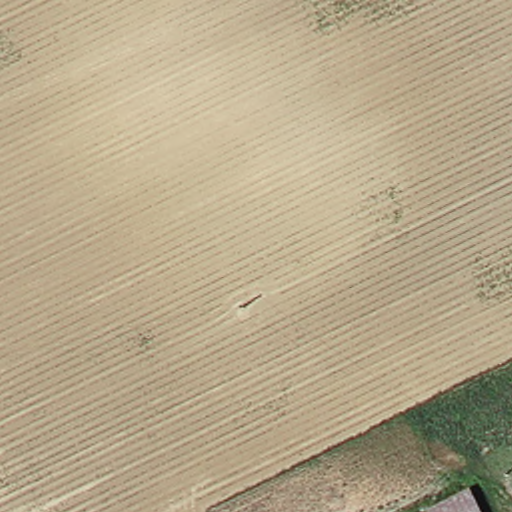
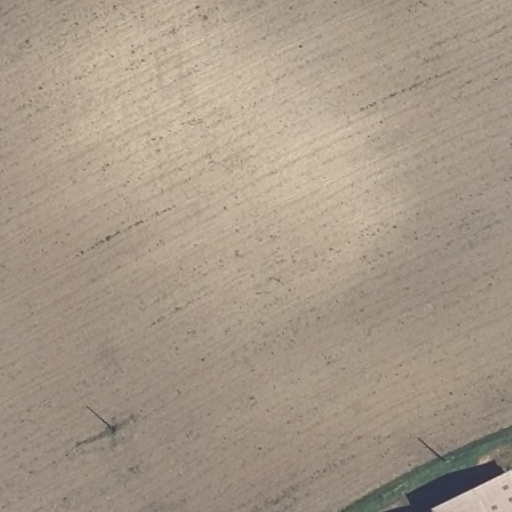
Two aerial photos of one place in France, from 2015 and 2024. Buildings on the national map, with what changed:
new [(433,512),(508,472),(512,481),(512,512),(433,512)]
demolished [(478,512),(433,512),(469,493),(478,512)]

